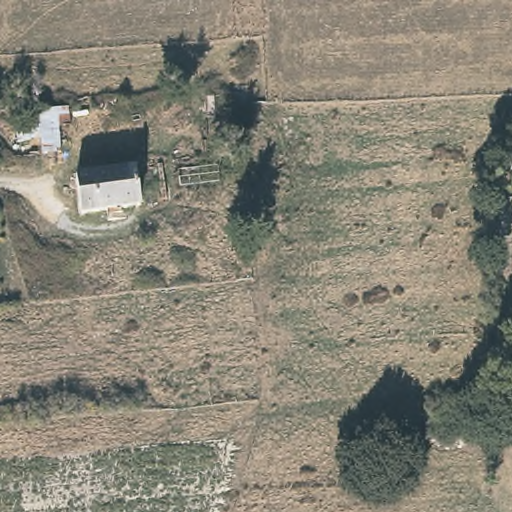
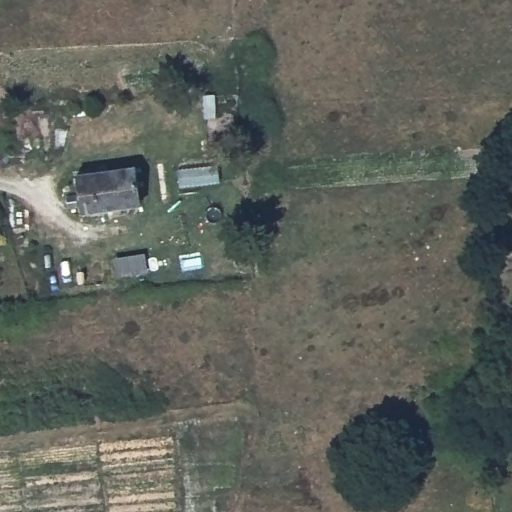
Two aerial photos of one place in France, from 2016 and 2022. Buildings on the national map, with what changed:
unchanged [(69,107),(70,126),(58,126),(61,152),(42,153),(40,139),(16,141),(14,107),(57,107),(69,107)]
unchanged [(137,205),(80,210),(76,171),(134,167),(137,205)]

